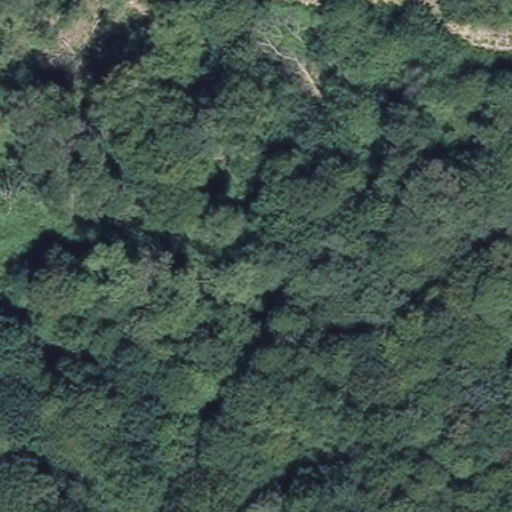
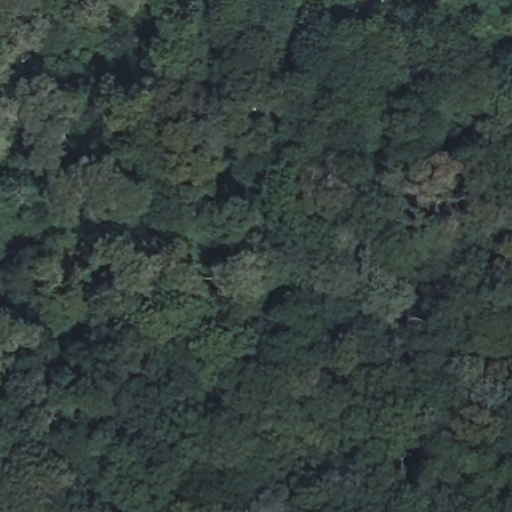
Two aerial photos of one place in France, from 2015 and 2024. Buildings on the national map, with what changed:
[]

